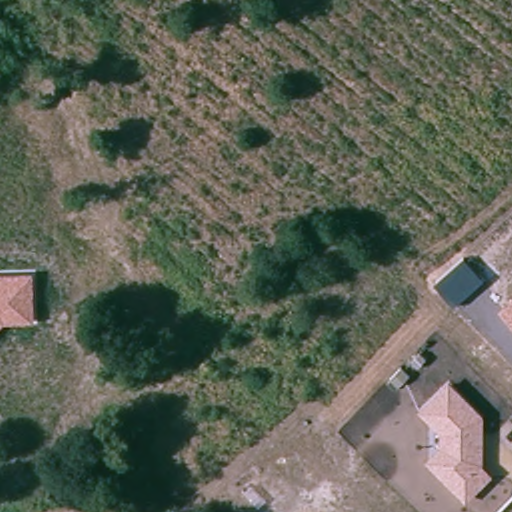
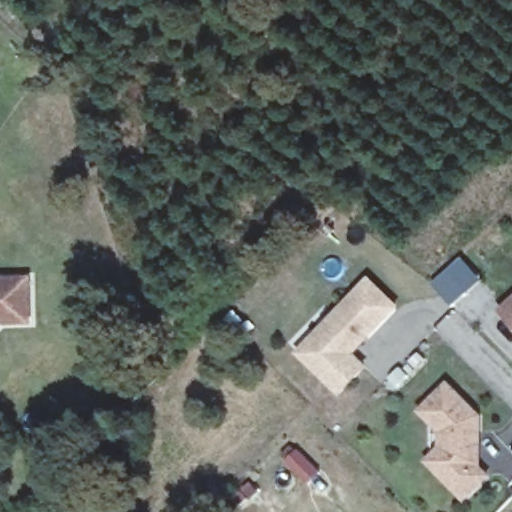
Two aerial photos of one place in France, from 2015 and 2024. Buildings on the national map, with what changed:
unchanged [(433,285),(463,256),(483,278),(453,307),(433,285)]
unchanged [(33,275),(33,325),(2,325),(0,328),(0,277),(33,275)]
new [(294,354),(369,275),(400,306),(357,353),(370,367),(341,397),(294,354)]
unchanged [(512,300),(512,327),(498,312),(512,300)]
unchanged [(441,445),(440,435),(417,411),(447,380),(484,415),(483,467),(492,477),(468,505),(425,461),(441,445)]

